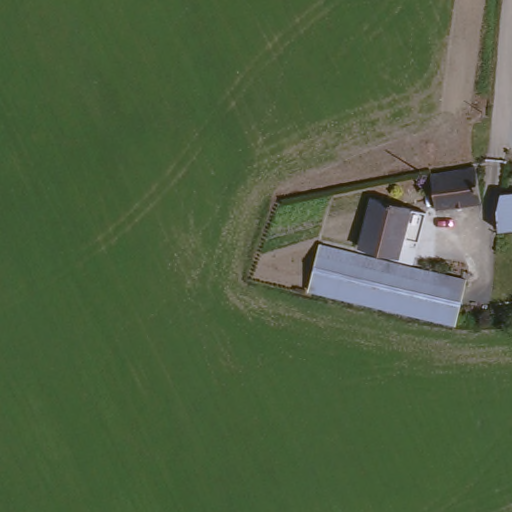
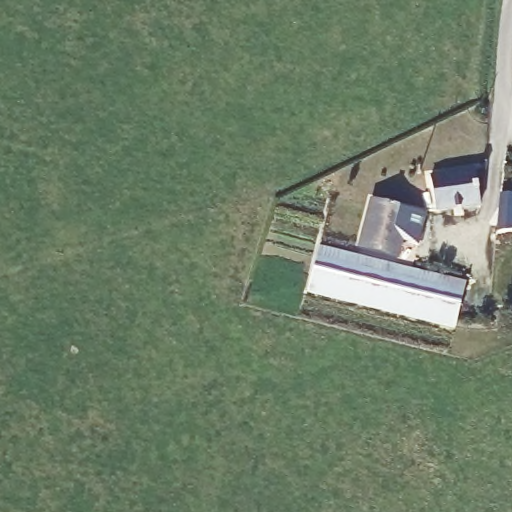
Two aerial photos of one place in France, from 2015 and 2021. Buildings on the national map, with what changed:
unchanged [(447,171),(485,174),(488,203),(453,207),(447,171)]
unchanged [(512,190),(512,229),(508,229),(504,191),(512,190)]
unchanged [(406,213),(408,213),(406,221),(422,227),(419,233),(421,233),(424,234),(423,238),(422,241),(421,243),(421,245),(418,256),(418,258),(417,262),(379,253),(388,209),(406,213)]
unchanged [(328,246),(415,268),(416,268),(423,270),(456,279),(478,284),(477,288),(475,295),(468,328),(463,327),(318,287),(328,246)]

